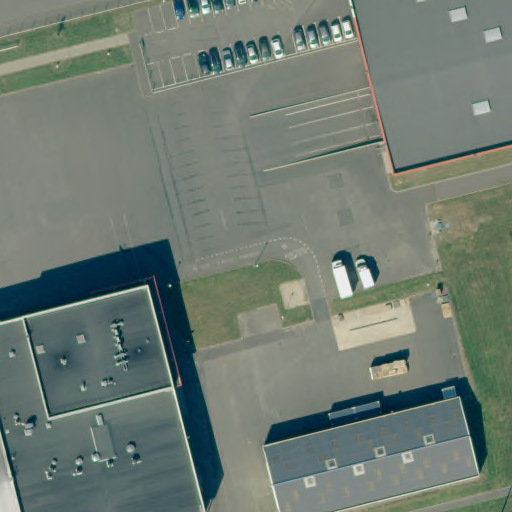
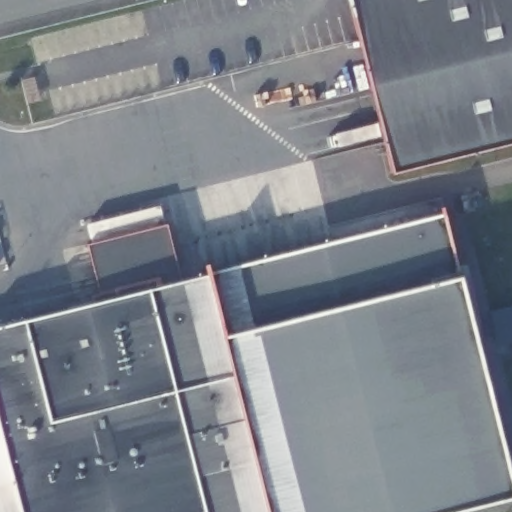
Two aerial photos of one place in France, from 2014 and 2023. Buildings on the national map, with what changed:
unchanged [(512,141),(392,170),(350,0),(512,0),(512,141)]
new [(182,281),(204,275),(441,215),(458,276),(512,492),(512,496),(448,512),(202,512),(147,290),(96,302),(91,294),(100,292),(88,244),(165,226),(182,281)]
demolished [(253,284),(260,310),(228,318),(221,292),(253,284)]
unchanged [(147,290),(202,512),(0,512),(0,327),(147,290)]
demolished [(483,476),(343,512),(283,512),(266,448),(463,397),(483,476)]

